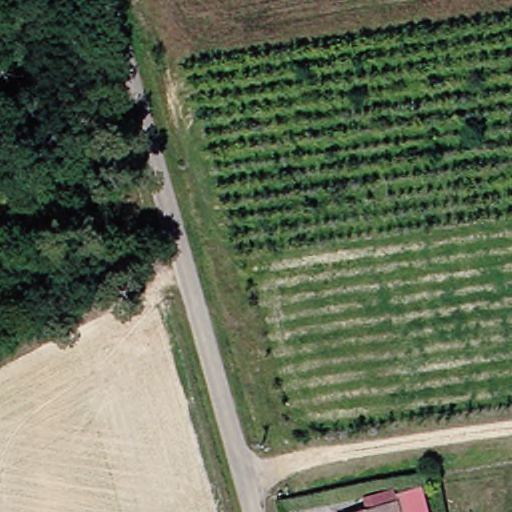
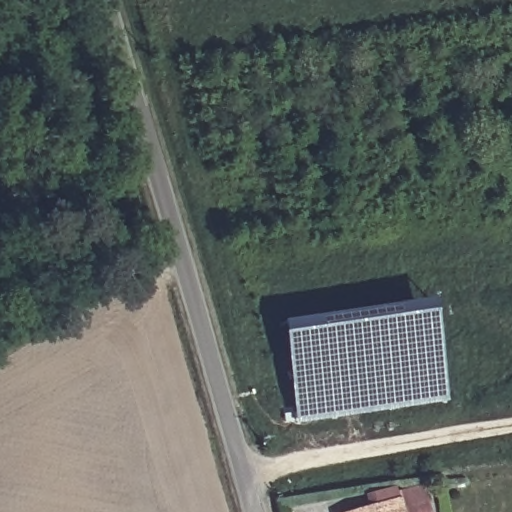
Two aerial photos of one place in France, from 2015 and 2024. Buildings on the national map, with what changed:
new [(296,424),(282,323),(431,302),(446,402),(296,424)]
unchanged [(426,488),(433,512),(394,512),(391,496),(426,488)]
unchanged [(330,512),(391,496),(394,512),(330,512)]

